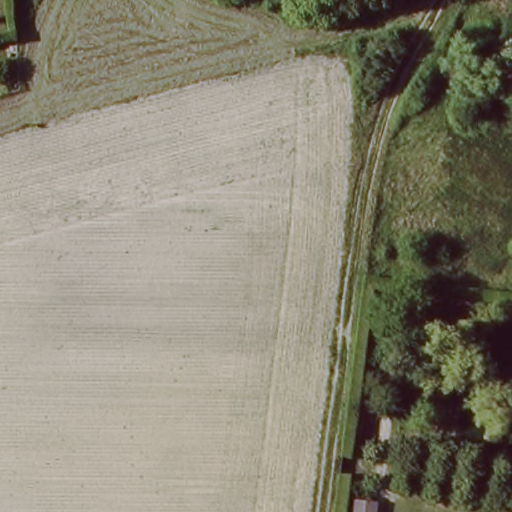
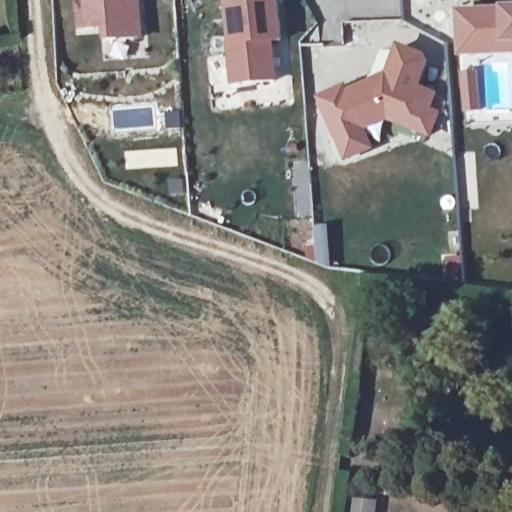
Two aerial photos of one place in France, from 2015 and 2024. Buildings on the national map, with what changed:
new [(106,41),(105,30),(79,31),(76,0),(143,0),(145,38),(106,41)]
new [(281,0),(284,42),(275,42),(278,82),(231,87),(227,46),(230,46),(227,5),(263,0),(281,0)]
new [(460,56),(457,10),(503,5),(512,5),(512,56),(460,56)]
new [(346,82),(349,87),(385,71),(399,42),(426,54),(430,63),(422,85),(440,93),(435,107),(442,112),(432,139),(387,120),(367,130),(375,149),(345,161),(317,97),(346,82)]
unchanged [(379,502),(378,512),(355,512),(357,501),(379,502)]

